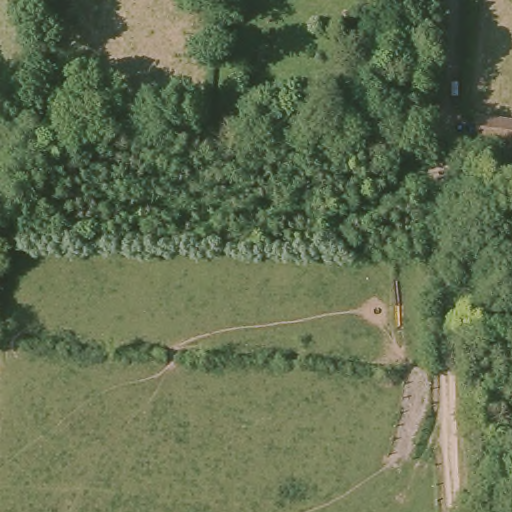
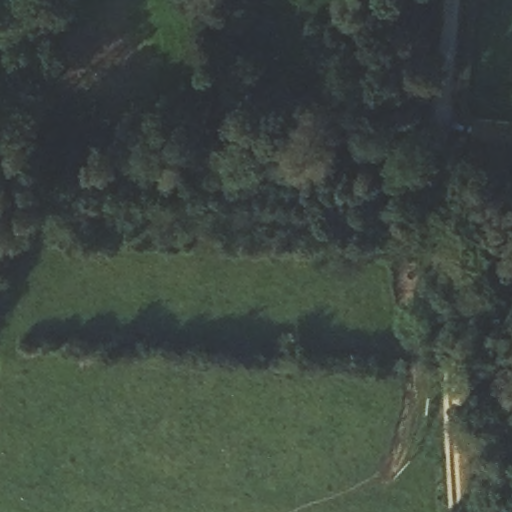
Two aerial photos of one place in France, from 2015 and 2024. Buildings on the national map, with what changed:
unchanged [(485,113),(512,116),(512,143),(483,139),(485,113)]

